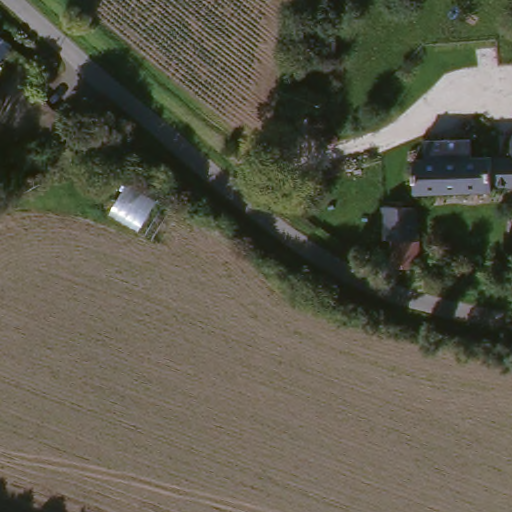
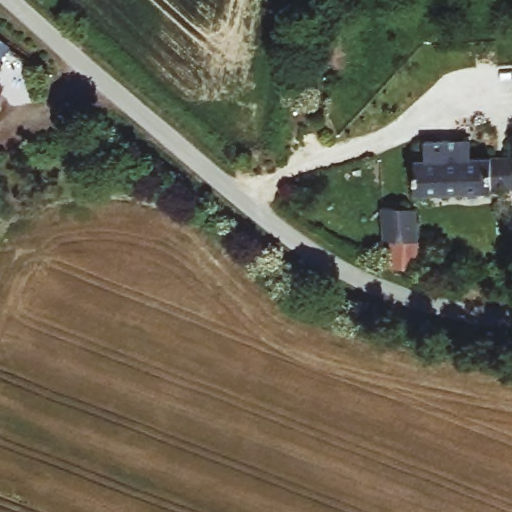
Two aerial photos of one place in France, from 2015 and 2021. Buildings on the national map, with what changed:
unchanged [(0,102),(0,82),(7,84),(0,102)]
unchanged [(412,158),(425,157),(423,135),(467,134),(469,154),(490,154),(510,154),(510,133),(512,132),(512,183),(511,187),(488,188),(413,191),(412,158)]
unchanged [(388,269),(388,239),(382,239),(380,208),(411,209),(415,269),(388,269)]

